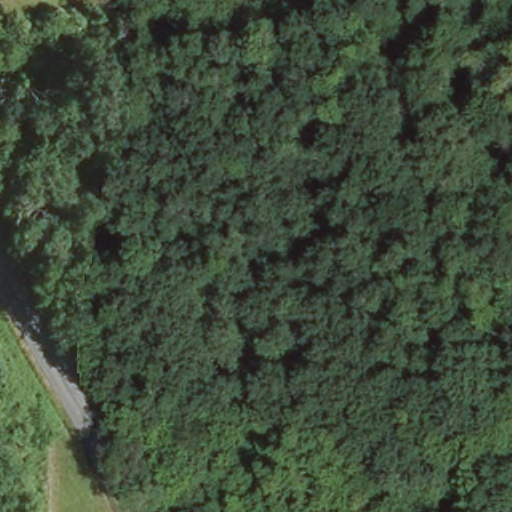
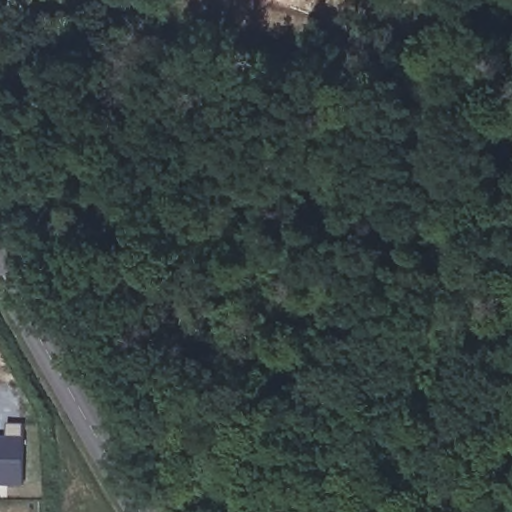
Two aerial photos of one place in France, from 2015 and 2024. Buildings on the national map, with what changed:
new [(287,0),(292,0),(291,2),(287,0)]
new [(0,487),(0,437),(9,437),(9,426),(27,427),(25,488),(0,487)]

